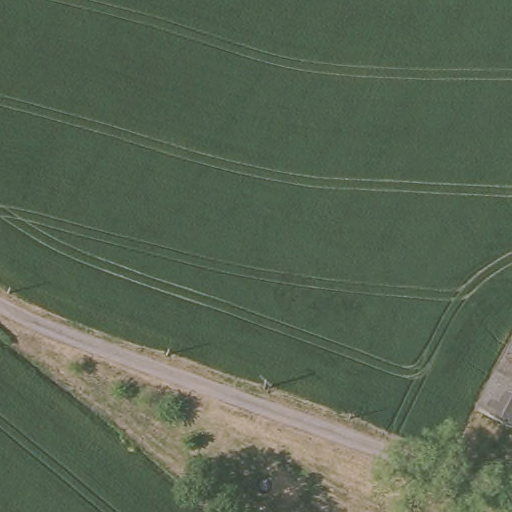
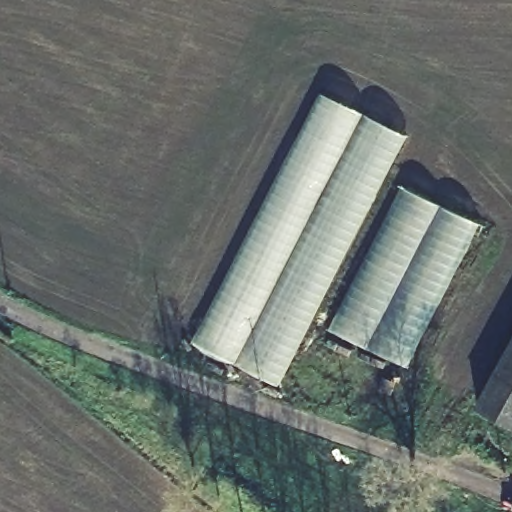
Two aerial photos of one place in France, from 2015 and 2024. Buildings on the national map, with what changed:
new [(408,136),(277,388),(191,343),(319,95),(408,136)]
new [(479,224),(407,370),(329,331),(401,188),(479,224)]
unchanged [(512,421),(483,406),(512,352),(512,421)]

